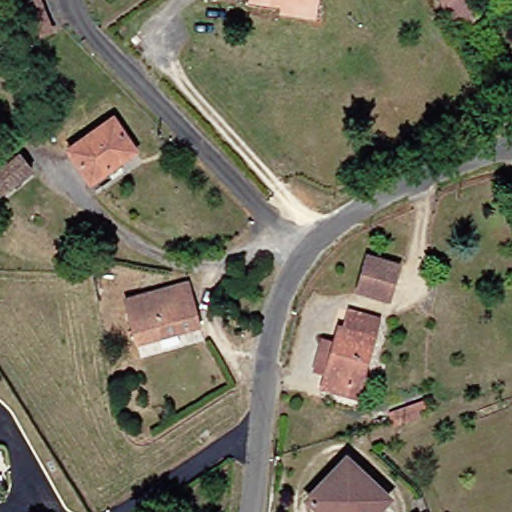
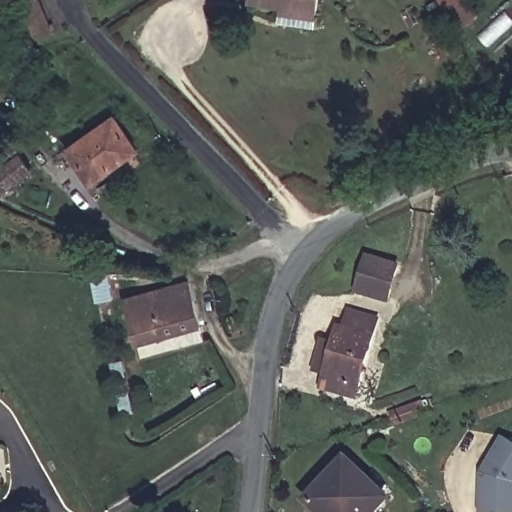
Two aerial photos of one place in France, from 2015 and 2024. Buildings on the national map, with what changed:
unchanged [(282,18),(282,11),(250,6),(250,0),(318,0),(316,9),(315,21),(282,18)]
unchanged [(436,0),(467,0),(475,14),(450,27),(440,8),(436,0)]
unchanged [(37,36),(26,7),(38,3),(49,32),(37,36)]
unchanged [(90,180),(70,150),(113,125),(131,154),(90,180)]
unchanged [(32,178),(0,200),(0,162),(13,153),(32,178)]
unchanged [(387,303),(362,296),(354,294),(363,259),(398,270),(392,286),(387,303)]
unchanged [(134,341),(125,314),(150,307),(149,299),(159,296),(158,292),(185,283),(197,321),(134,341)]
unchanged [(346,327),(350,311),(378,318),(355,402),(323,392),(330,367),(318,363),(327,338),(338,341),(342,326),(346,327)]
new [(485,457),(500,433),(512,440),(512,512),(478,512),(478,470),(480,467),(485,457)]
unchanged [(319,512),(309,502),(347,462),(388,500),(378,512),(319,512)]

